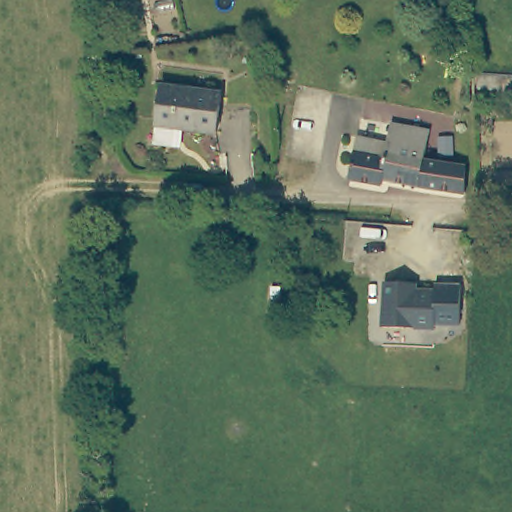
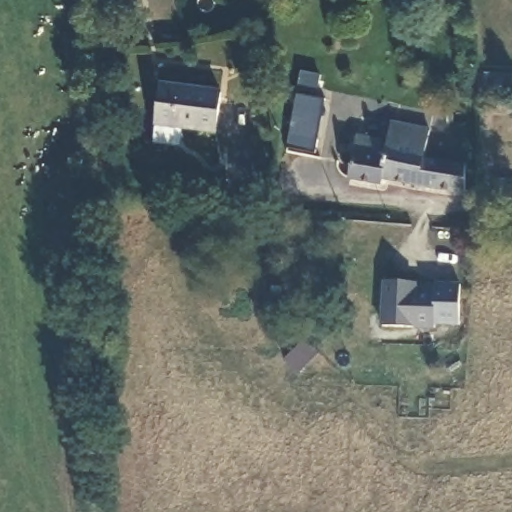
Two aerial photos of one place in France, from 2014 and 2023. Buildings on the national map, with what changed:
unchanged [(511,90),(477,88),(478,75),(512,77),(511,90)]
unchanged [(153,143),(155,125),(160,85),(220,93),(215,132),(174,127),(172,146),(153,143)]
new [(286,148),(297,95),(325,100),(314,153),(286,148)]
unchanged [(429,129),(423,159),(465,166),(463,192),(382,178),(381,184),(349,179),(356,137),(386,142),(390,122),(429,129)]
unchanged [(414,281),(414,288),(434,289),(432,327),(381,325),(383,280),(414,281)]
unchanged [(434,289),(434,283),(460,284),(458,326),(432,323),(434,289)]

